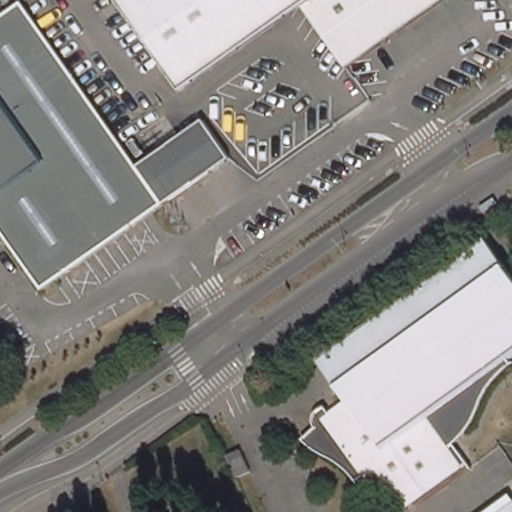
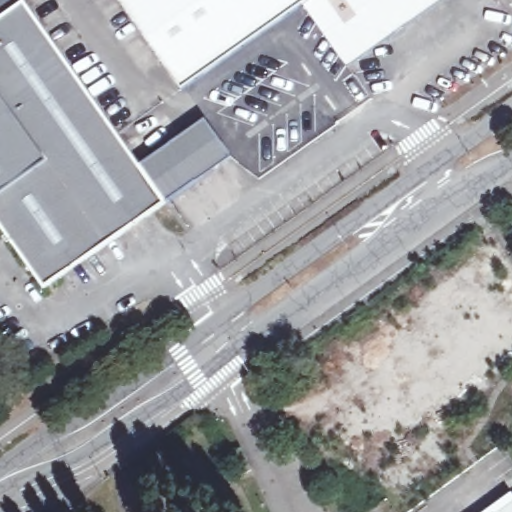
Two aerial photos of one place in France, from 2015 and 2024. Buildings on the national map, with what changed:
unchanged [(304,8),(185,91),(122,0),(444,0),(350,70),(304,8)]
unchanged [(16,4),(137,169),(162,204),(41,291),(0,235),(0,15),(16,4)]
unchanged [(202,123),(226,156),(191,183),(166,148),(202,123)]
unchanged [(166,148),(191,183),(162,204),(137,169),(166,148)]
demolished [(353,477),(350,473),(346,470),(343,468),(340,465),(332,461),(328,458),(325,457),(320,454),(315,451),(318,446),(326,438),(319,429),(317,426),(316,423),(317,419),(319,416),(321,414),(325,412),(330,410),(334,417),(350,403),(352,402),(325,363),(339,353),(343,349),(341,346),(348,341),(351,344),(420,293),(420,292),(418,291),(428,283),(431,286),(460,265),(486,245),(512,280),(512,351),(506,356),(511,364),(508,367),(492,380),(448,412),(430,426),(447,450),(447,451),(452,457),(457,453),(460,456),(467,467),(462,471),(407,512),(388,512),(364,478),(358,482),(356,480),(353,477)]
demolished [(448,412),(492,380),(508,367),(498,379),(490,389),(479,410),(475,418),(467,429),(463,437),(457,436),(456,442),(450,442),(449,448),(447,450),(430,426),(448,412)]
unchanged [(236,471),(227,454),(240,447),(251,470),(239,476),(236,471)]

